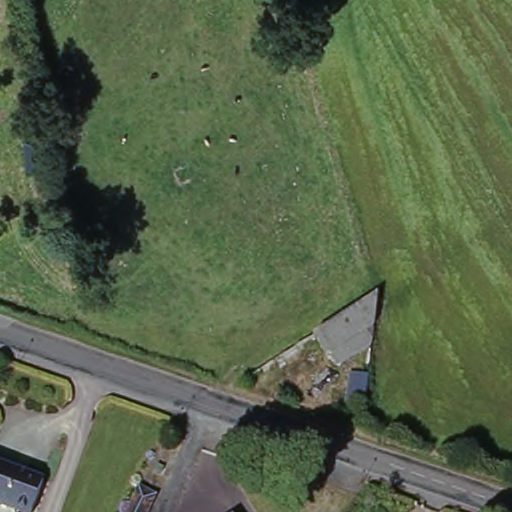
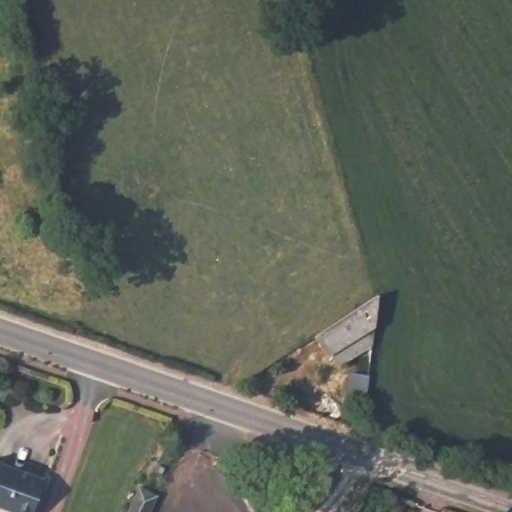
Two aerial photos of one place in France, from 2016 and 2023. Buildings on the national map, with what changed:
unchanged [(38,144),(43,170),(24,172),(19,146),(38,144)]
unchanged [(328,351),(325,354),(315,335),(374,294),(372,325),(370,341),(335,361),(328,351)]
unchanged [(34,512),(26,512),(0,503),(0,461),(46,477),(34,512)]
unchanged [(147,512),(128,512),(136,494),(152,500),(147,512)]

